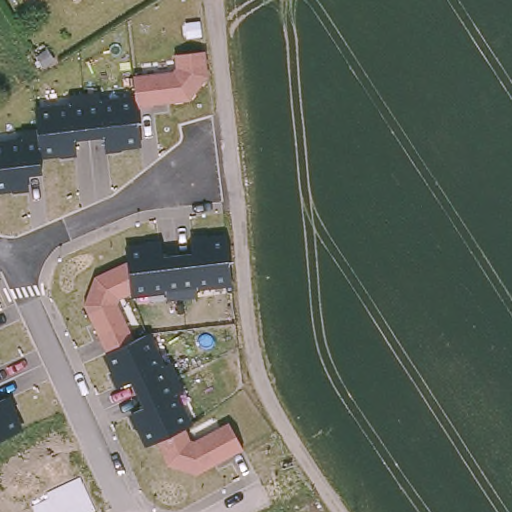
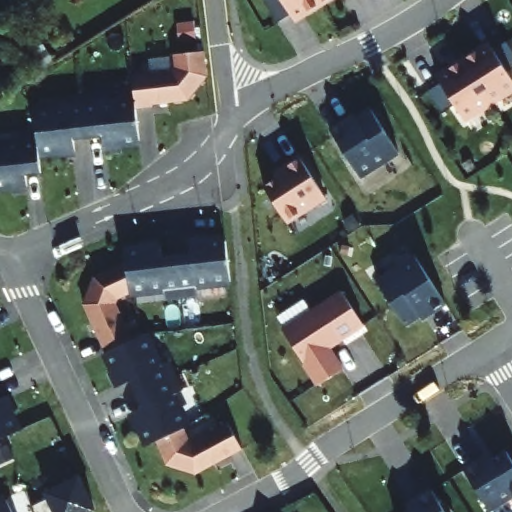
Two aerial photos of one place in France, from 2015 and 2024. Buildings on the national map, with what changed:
new [(296,20),(283,0),(327,0),(296,20)]
unchanged [(0,134),(33,131),(31,104),(131,94),(129,75),(168,74),(173,69),(173,51),(202,49),(201,75),(186,103),(134,108),(138,149),(99,150),(98,135),(69,135),(70,154),(33,156),(36,188),(36,189),(0,191),(0,134)]
new [(467,120),(442,82),(455,73),(452,67),(478,52),(481,57),(495,49),(512,76),(512,91),(467,120)]
new [(332,130),(345,121),(347,125),(371,109),(400,152),(362,177),(332,130)]
new [(289,221),(266,184),(289,170),(287,166),(300,158),(324,197),(289,221)]
unchanged [(90,275),(120,262),(118,240),(221,230),(225,289),(129,299),(126,290),(109,298),(124,329),(138,322),(153,354),(164,350),(178,380),(171,385),(191,422),(183,426),(190,439),(226,420),(241,450),(197,472),(163,462),(154,440),(143,443),(81,310),(90,275)]
new [(445,302),(432,311),(430,309),(407,326),(379,282),(417,258),(445,302)]
new [(363,324),(328,346),(344,370),(319,385),(284,331),(343,292),(363,324)]
unchanged [(19,430),(0,438),(0,392),(2,391),(19,430)]
new [(489,509),(467,471),(479,463),(483,468),(507,452),(512,460),(512,495),(489,509)]
unchanged [(47,492),(81,478),(97,511),(96,512),(35,512),(32,506),(50,498),(47,492)]
new [(445,512),(408,512),(423,503),(419,498),(433,490),(445,512)]
unchanged [(18,512),(0,512),(0,501),(9,497),(18,512)]

